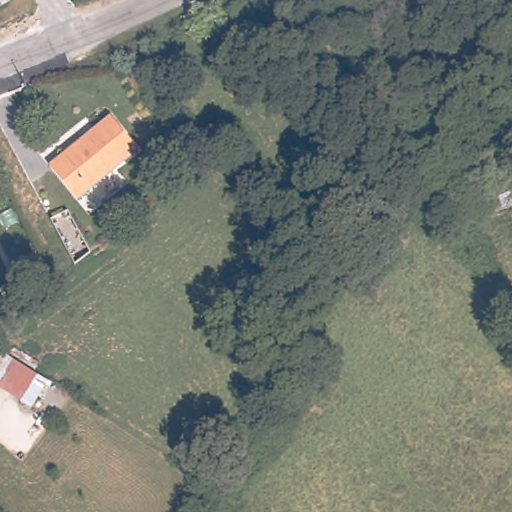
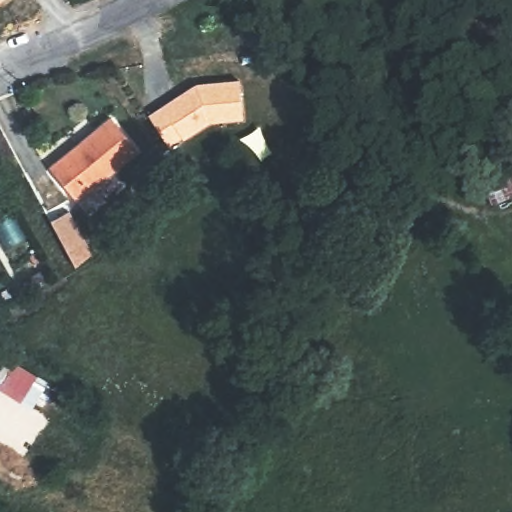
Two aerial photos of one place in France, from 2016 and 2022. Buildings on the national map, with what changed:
unchanged [(0,2),(0,0),(3,0),(0,2)]
new [(196,81),(239,75),(244,114),(211,118),(186,136),(184,134),(171,143),(150,113),(196,81)]
unchanged [(116,115),(142,148),(81,196),(55,163),(116,115)]
unchanged [(490,179),(512,170),(512,204),(501,209),(490,179)]
unchanged [(59,235),(49,218),(66,208),(90,251),(74,263),(59,235)]
unchanged [(27,399),(0,385),(0,347),(41,372),(27,399)]

